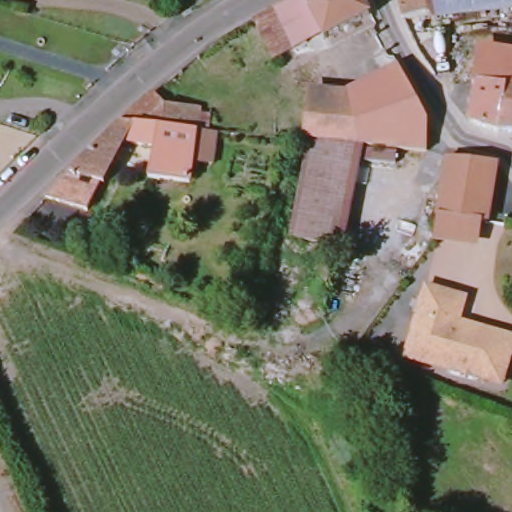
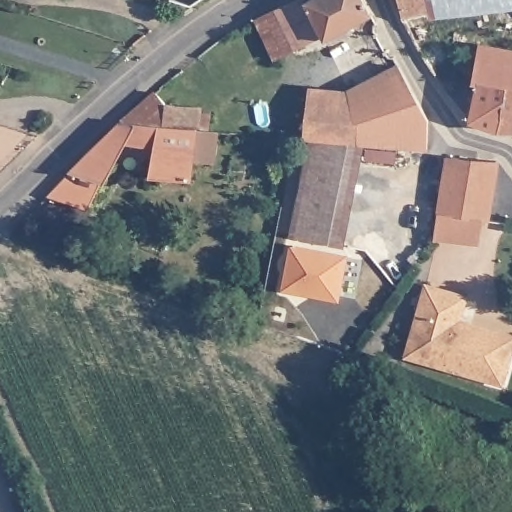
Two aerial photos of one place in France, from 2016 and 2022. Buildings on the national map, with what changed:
unchanged [(361,0),(369,11),(324,39),(321,35),(274,59),(249,21),(283,0),(361,0)]
unchanged [(386,0),(383,1),(383,0),(386,0)]
unchanged [(512,0),(512,7),(427,22),(441,63),(447,90),(436,90),(390,24),(383,1),(386,0),(512,0)]
unchanged [(473,86),(468,86),(471,45),(512,51),(512,88),(502,88),(473,86)]
unchanged [(361,145),(359,131),(348,91),(392,63),(423,114),(427,151),(361,145)]
unchanged [(494,125),(464,116),(473,86),(502,88),(494,125)]
unchanged [(151,88),(162,101),(201,105),(199,126),(117,119),(151,88)]
unchanged [(502,88),(512,88),(512,127),(494,125),(502,88)]
unchanged [(359,131),(361,145),(310,141),(309,141),(307,141),(311,91),(348,91),(359,131)]
unchanged [(72,160),(117,119),(199,126),(195,166),(194,181),(142,176),(147,146),(115,143),(102,187),(56,175),(72,160)]
unchanged [(199,126),(229,130),(224,169),(195,166),(199,126)]
unchanged [(331,244),(282,232),(309,141),(310,141),(361,145),(360,151),(335,245),(331,244)]
unchanged [(445,159),(492,163),(481,225),(431,217),(445,159)]
unchanged [(431,217),(481,225),(478,244),(426,237),(431,217)]
new [(276,291),(290,245),(349,258),(337,304),(276,291)]
unchanged [(403,363),(419,289),(461,298),(457,322),(454,331),(496,340),(487,381),(403,363)]
unchanged [(504,384),(487,381),(496,340),(454,331),(457,322),(512,334),(512,342),(504,384)]

